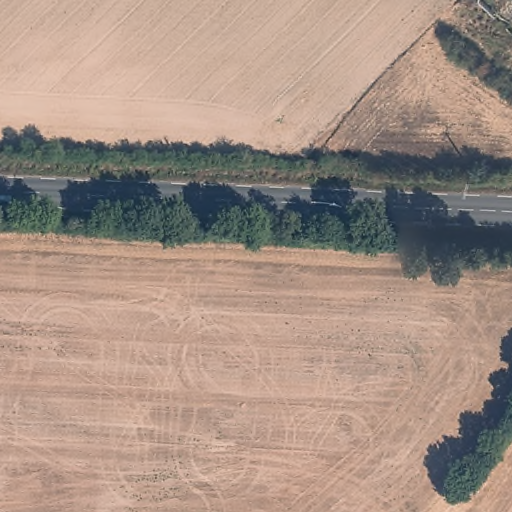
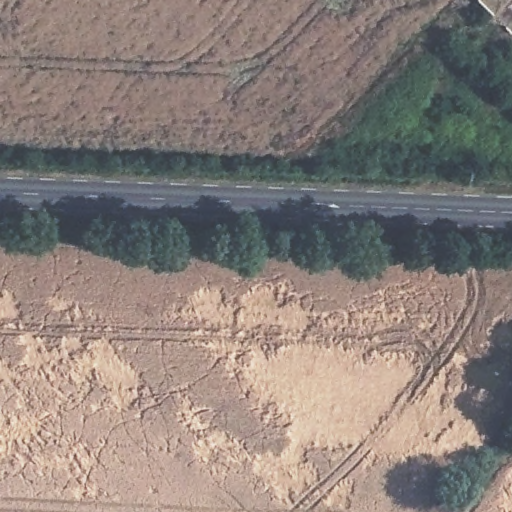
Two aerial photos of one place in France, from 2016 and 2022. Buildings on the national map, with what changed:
unchanged [(477,3),(480,0),(512,0),(512,3),(495,21),(477,3)]

